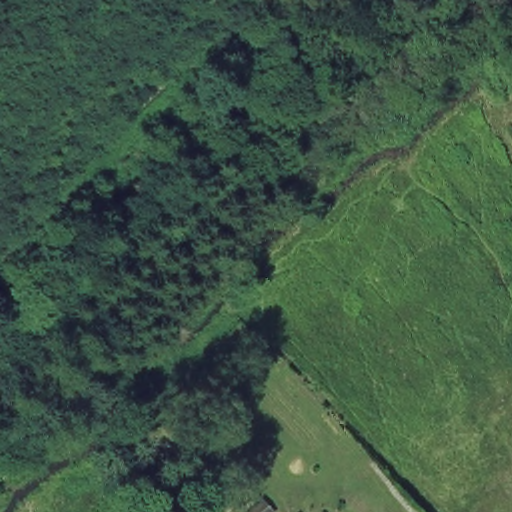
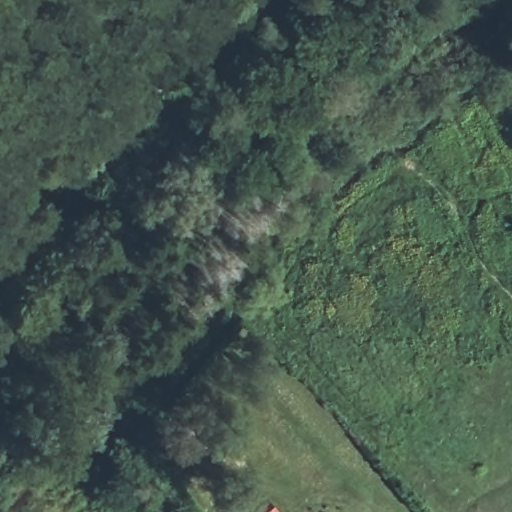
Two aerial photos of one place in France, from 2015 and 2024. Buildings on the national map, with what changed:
unchanged [(257,487),(278,512),(243,512),(238,505),(257,487)]

